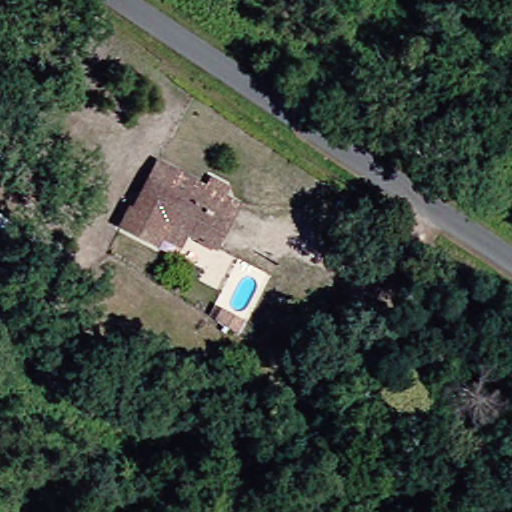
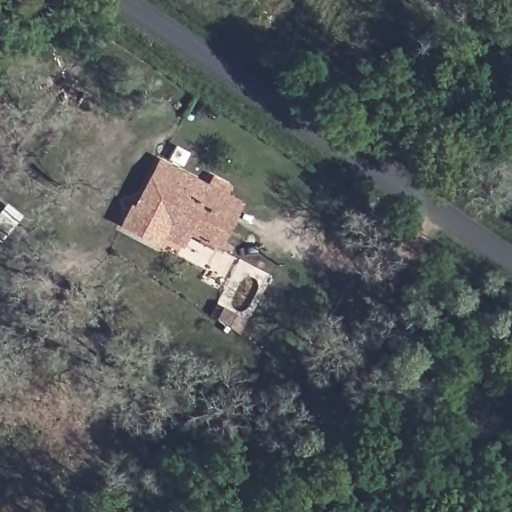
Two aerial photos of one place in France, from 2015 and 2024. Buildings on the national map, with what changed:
unchanged [(172,242),(130,227),(162,156),(236,191),(252,199),(231,242),(217,236),(201,228),(191,250),(172,242)]
unchanged [(0,356),(0,351),(3,353),(0,356)]

